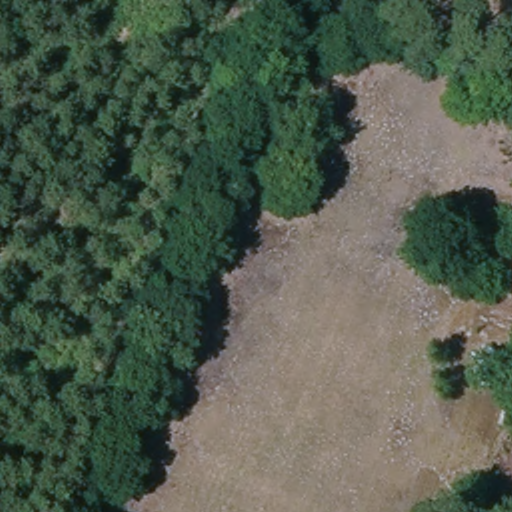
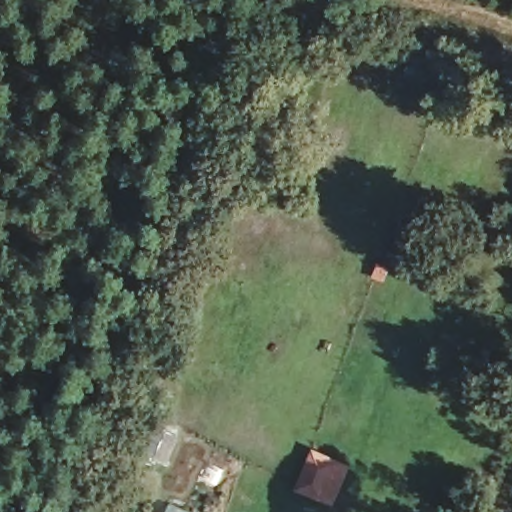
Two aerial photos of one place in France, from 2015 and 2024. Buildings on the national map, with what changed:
new [(311,449),(351,466),(334,506),(293,490),(311,449)]

